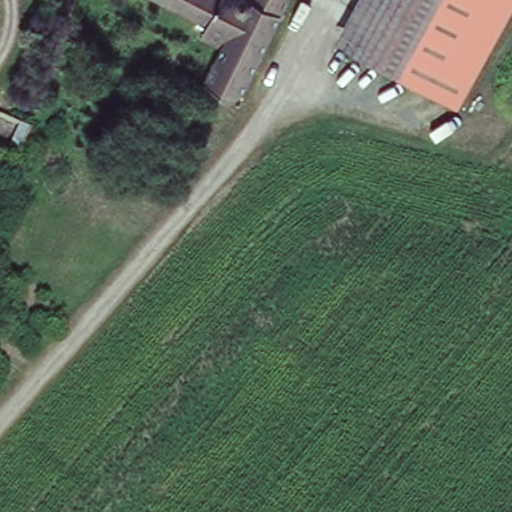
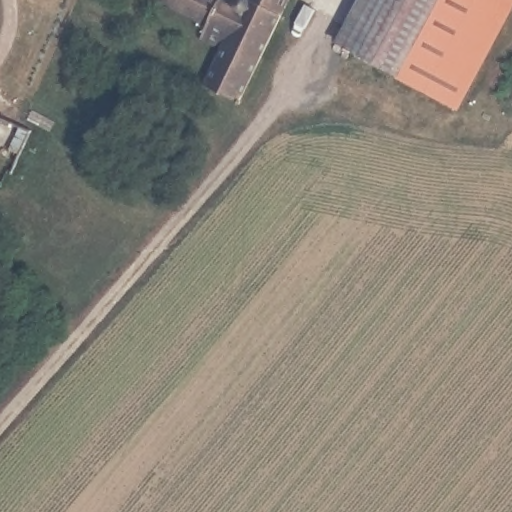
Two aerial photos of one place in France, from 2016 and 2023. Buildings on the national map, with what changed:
unchanged [(156,0),(242,0),(246,4),(247,0),(289,0),(261,57),(241,99),(239,103),(206,86),(224,51),(225,48),(216,43),(203,37),(205,33),(209,25),(156,0)]
unchanged [(512,0),(512,7),(458,113),(336,42),(357,0),(512,0)]
unchanged [(26,152),(0,140),(0,115),(36,131),(26,152)]

